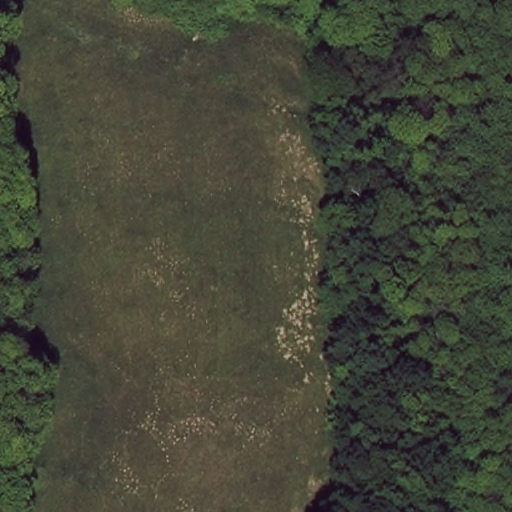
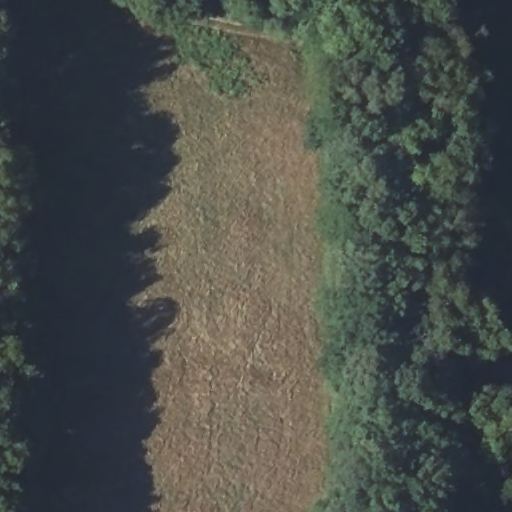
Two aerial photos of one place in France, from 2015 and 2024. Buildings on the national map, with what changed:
[]

